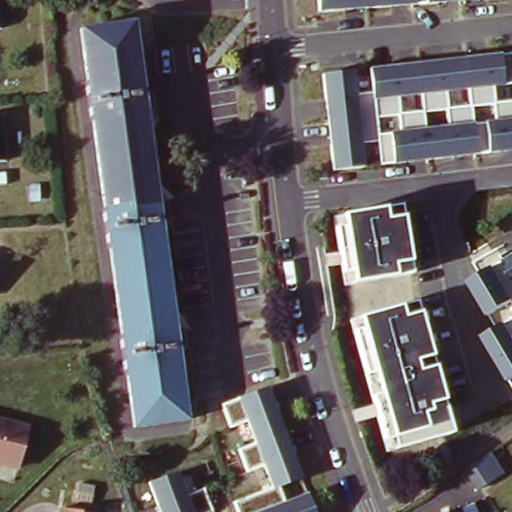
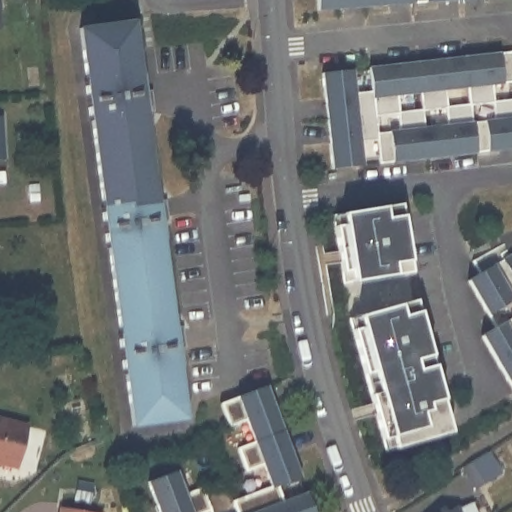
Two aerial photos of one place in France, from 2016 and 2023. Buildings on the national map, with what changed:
unchanged [(0,28),(0,0),(1,0),(4,28),(0,28)]
unchanged [(321,0),(512,0),(512,1),(322,15),(321,0)]
unchanged [(132,25),(135,44),(140,76),(142,76),(147,116),(145,116),(157,202),(160,203),(165,239),(162,239),(175,329),(177,329),(182,366),(181,367),(187,419),(134,427),(127,376),(124,376),(118,334),(121,334),(109,247),(106,247),(102,210),(104,208),(92,122),(89,121),(85,83),(87,82),(80,33),(132,25)]
unchanged [(361,91),(379,90),(377,66),(512,53),(512,85),(497,87),(499,99),(512,98),(512,154),(382,167),(381,141),(363,142),(366,169),(336,173),(326,71),(357,70),(361,91)]
unchanged [(2,119),(5,162),(0,162),(0,120),(2,119)]
unchanged [(416,273),(351,284),(341,213),(405,204),(416,273)]
unchanged [(481,334),(496,327),(471,277),(512,254),(512,384),(481,334)]
unchanged [(456,433),(395,451),(356,317),(417,297),(456,433)]
unchanged [(234,501),(272,487),(263,466),(247,473),(237,449),(254,442),(246,419),(230,426),(220,403),(237,397),(267,386),(302,477),(280,485),(285,499),(308,491),(316,512),(237,512),(234,501)]
unchanged [(27,431),(16,472),(2,468),(0,468),(0,424),(27,431)]
unchanged [(495,453),(508,473),(483,489),(470,469),(495,453)]
unchanged [(178,470),(187,494),(204,487),(212,510),(207,512),(159,512),(147,481),(178,470)]
unchanged [(80,512),(57,512),(57,508),(80,512)]
unchanged [(459,509),(460,512),(454,512),(459,509)]

